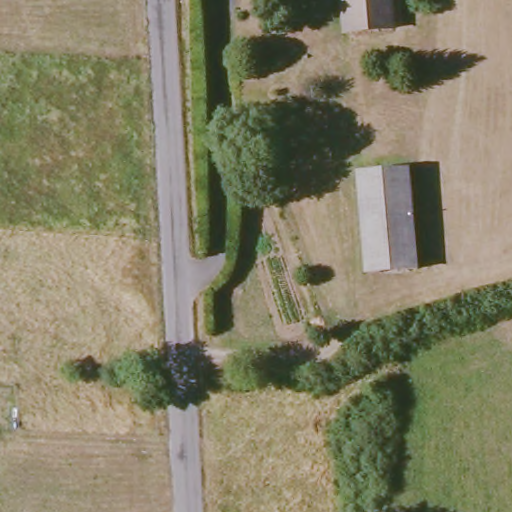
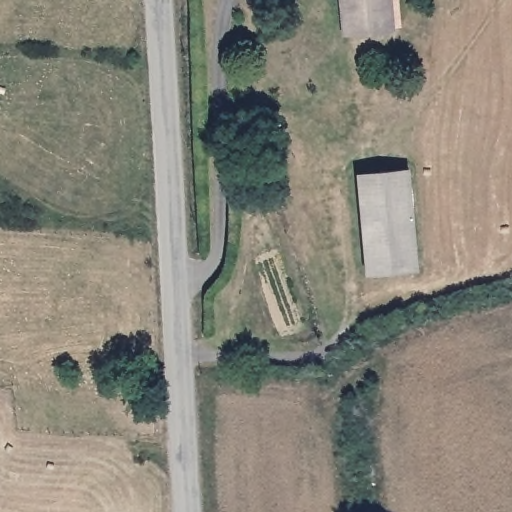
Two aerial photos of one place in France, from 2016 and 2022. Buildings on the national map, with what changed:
unchanged [(357,33),(349,33),(346,0),(393,0),(395,31),(357,33)]
unchanged [(412,170),(421,273),(367,276),(359,172),(412,170)]

